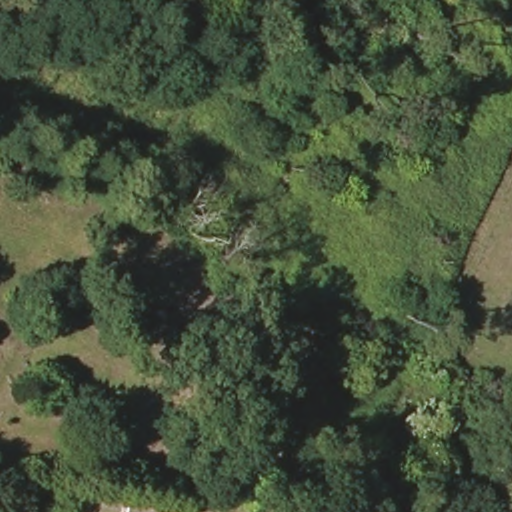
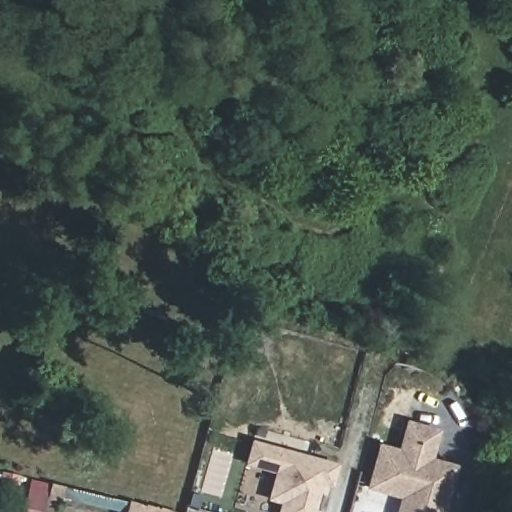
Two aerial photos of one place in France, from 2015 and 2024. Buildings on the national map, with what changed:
new [(400,497),(368,488),(378,442),(399,448),(406,419),(440,428),(433,458),(458,464),(445,512),(396,512),(400,497)]
new [(321,508),(313,506),(311,512),(277,512),(280,499),(267,496),(275,469),(245,461),(250,441),(333,464),(328,483),(320,480),(316,494),(324,496),(321,508)]
unchanged [(48,512),(32,512),(36,497),(51,502),(48,512)]
unchanged [(138,507),(154,512),(136,512),(138,507)]

